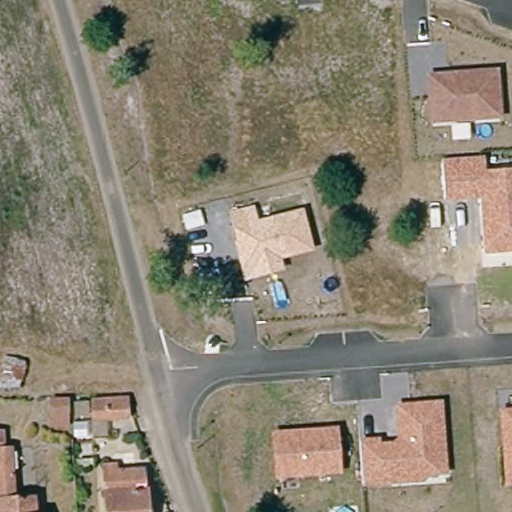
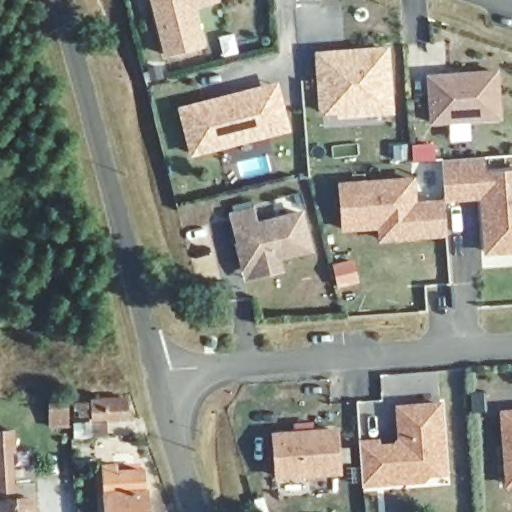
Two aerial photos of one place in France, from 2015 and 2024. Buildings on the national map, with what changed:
new [(205,41),(168,50),(156,0),(202,0),(195,1),(205,41)]
new [(325,106),(321,49),(339,48),(345,47),(390,45),(394,106),(370,108),(343,110),(343,105),(325,106)]
unchanged [(426,74),(499,69),(502,119),(430,126),(426,74)]
new [(191,156),(178,106),(279,81),(291,130),(191,156)]
unchanged [(479,198),(445,200),(443,159),(484,155),(485,170),(512,168),(512,254),(483,255),(479,198)]
new [(417,201),(445,200),(447,236),(378,242),(378,229),(341,232),(337,182),(416,176),(417,201)]
unchanged [(233,246),(236,244),(228,212),(254,205),(259,220),(302,208),(314,250),(282,260),(285,271),(244,283),(233,246)]
new [(353,261),(358,280),(339,285),(334,266),(353,261)]
unchanged [(129,419),(96,423),(94,436),(72,439),(73,427),(49,427),(50,417),(49,396),(69,395),(126,393),(129,419)]
unchanged [(359,438),(379,437),(380,442),(392,441),(396,436),(393,403),(442,400),(447,475),(428,478),(424,483),(363,487),(359,438)]
unchanged [(498,410),(512,408),(512,487),(505,487),(498,410)]
unchanged [(270,432),(337,426),(342,475),(274,480),(270,432)]
unchanged [(0,434),(2,446),(13,446),(14,497),(38,497),(40,512),(0,512),(0,434)]
unchanged [(116,463),(117,472),(143,472),(148,512),(108,512),(106,465),(116,463)]

